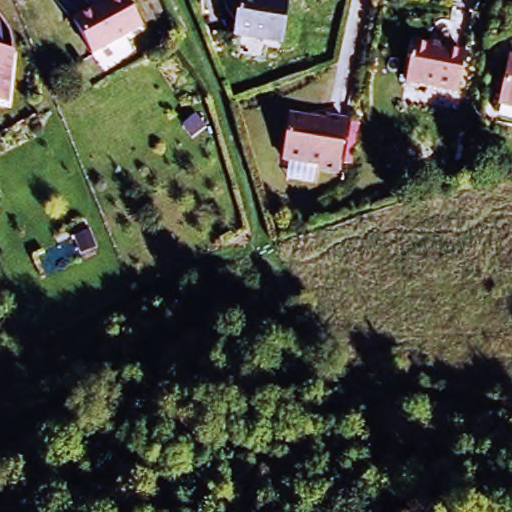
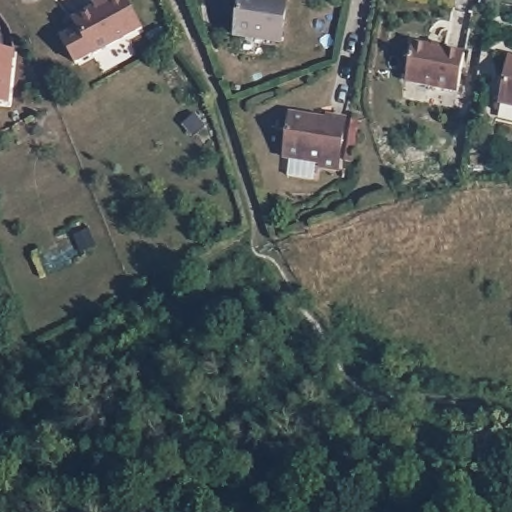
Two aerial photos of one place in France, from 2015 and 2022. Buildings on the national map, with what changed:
unchanged [(105,3),(103,0),(125,0),(141,29),(93,56),(73,21),(105,3)]
unchanged [(239,0),(267,0),(287,3),(281,43),(235,36),(239,0)]
unchanged [(13,46),(8,98),(0,97),(0,45),(13,46)]
unchanged [(406,82),(413,45),(464,55),(458,91),(406,82)]
unchanged [(509,60),(512,60),(512,106),(500,104),(509,60)]
unchanged [(308,121),(313,121),(313,119),(322,120),(323,116),(341,119),(333,169),(315,166),(316,163),(279,158),(285,115),(306,118),(308,121)]

